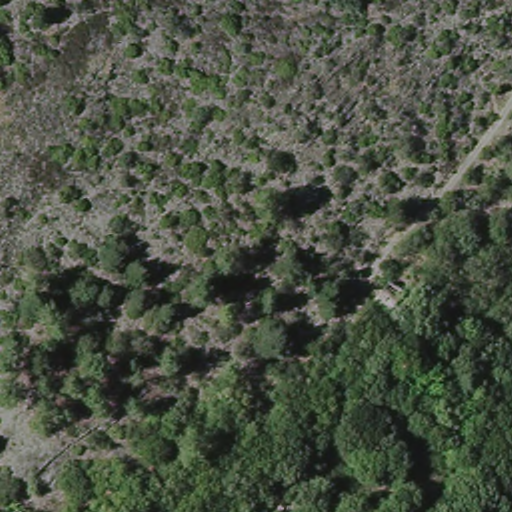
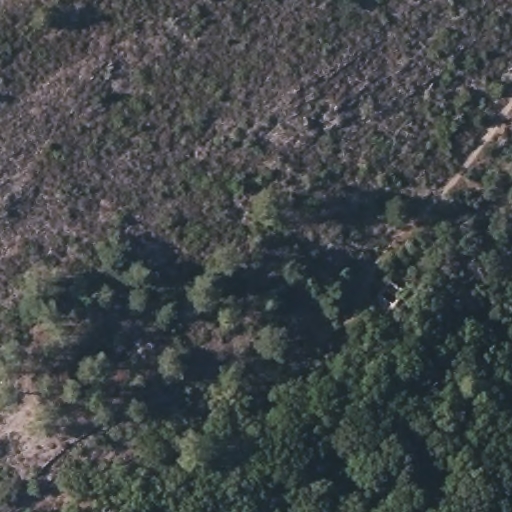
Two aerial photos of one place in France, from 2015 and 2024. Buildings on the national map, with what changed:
unchanged [(416,295),(405,317),(388,308),(398,287),(416,295)]

